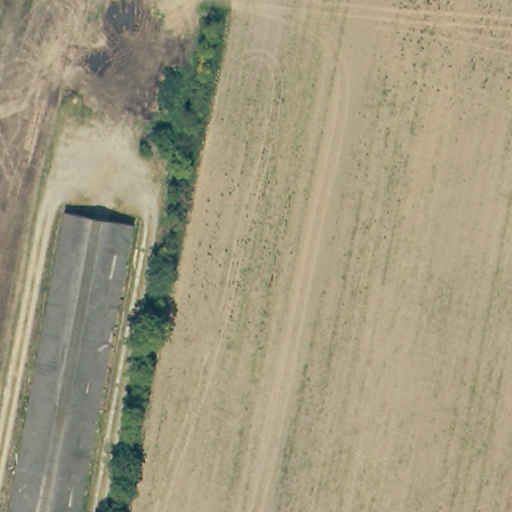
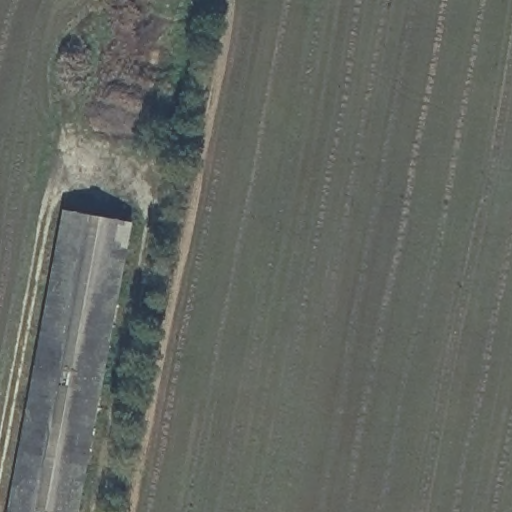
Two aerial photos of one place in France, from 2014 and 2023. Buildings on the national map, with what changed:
unchanged [(137,225),(81,512),(15,512),(74,213),(137,225)]

